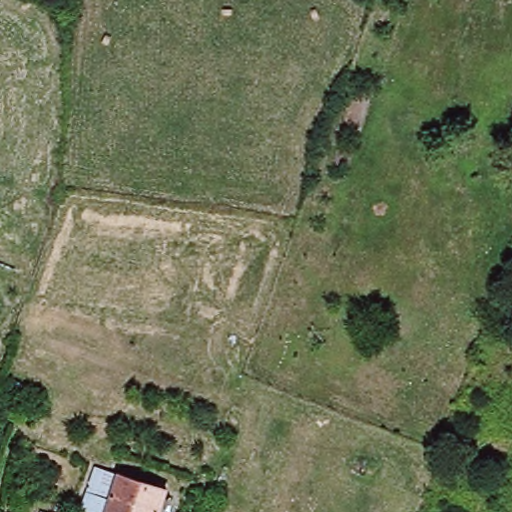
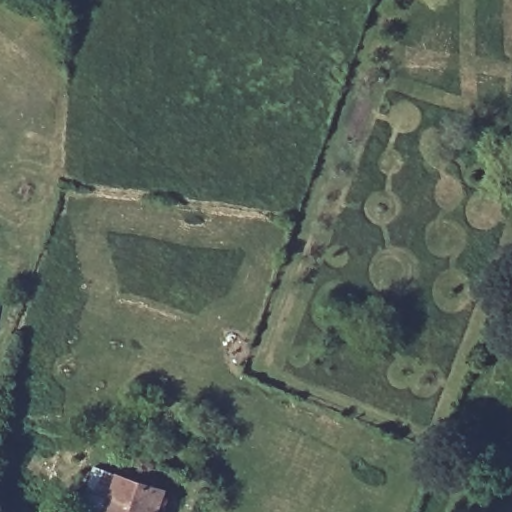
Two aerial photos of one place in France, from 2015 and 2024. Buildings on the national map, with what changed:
unchanged [(148,512),(95,512),(107,475),(155,490),(148,512)]

